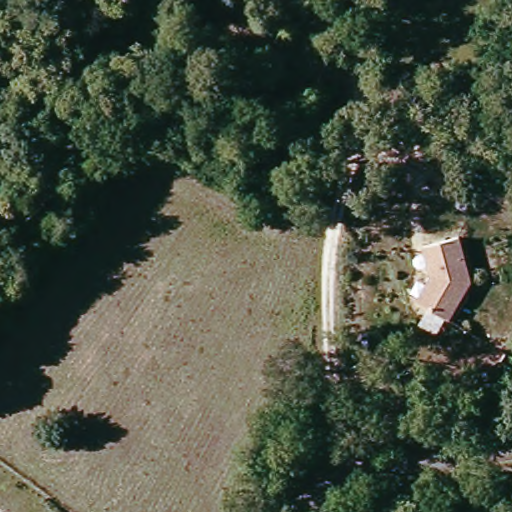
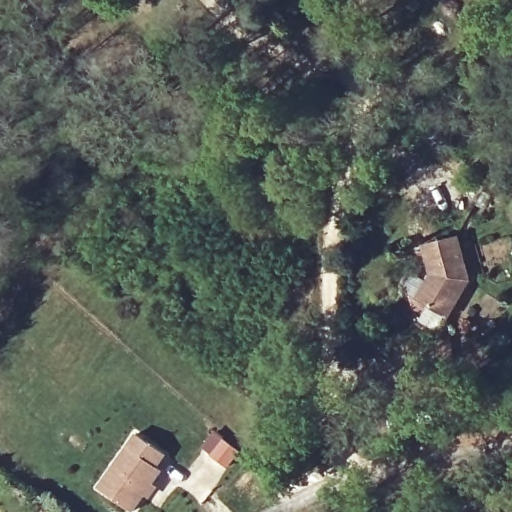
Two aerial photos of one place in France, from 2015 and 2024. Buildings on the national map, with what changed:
unchanged [(461,234),(473,278),(450,318),(415,299),(430,273),(422,244),(461,234)]
new [(156,467),(160,471),(152,485),(155,486),(148,498),(143,495),(131,512),(97,486),(134,433),(164,455),(156,467)]

